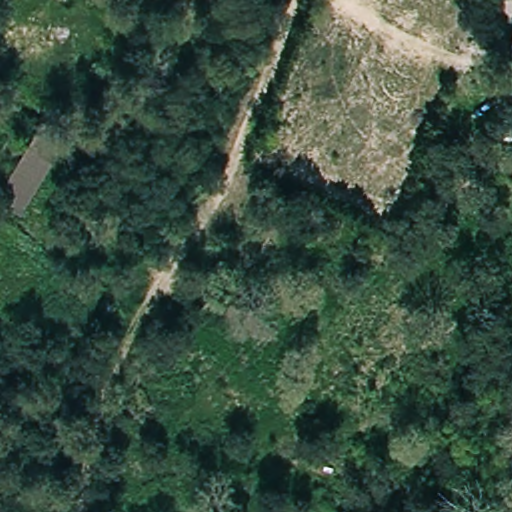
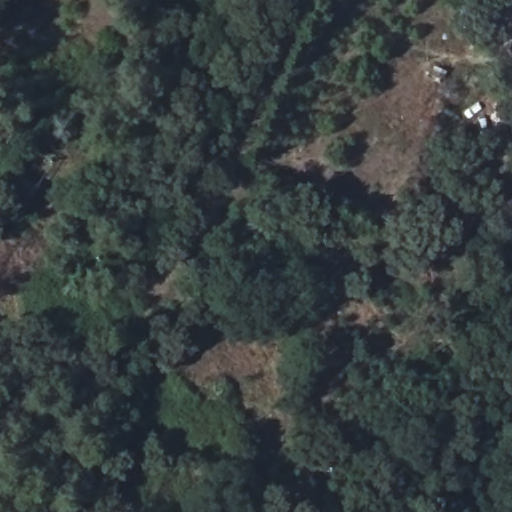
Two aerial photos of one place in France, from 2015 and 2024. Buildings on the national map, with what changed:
unchanged [(0,154),(0,96),(23,117),(0,154)]
unchanged [(0,191),(39,125),(86,126),(23,216),(0,205),(0,191)]

